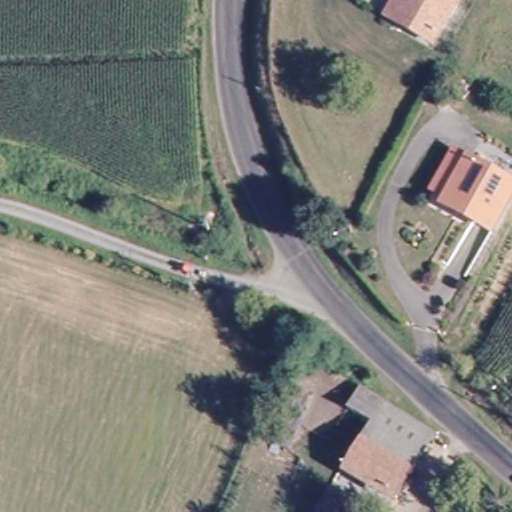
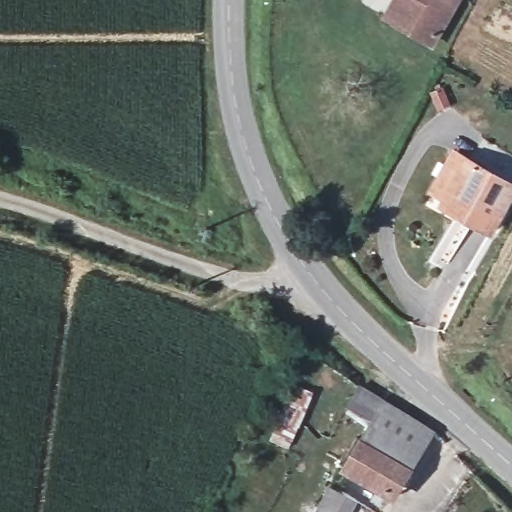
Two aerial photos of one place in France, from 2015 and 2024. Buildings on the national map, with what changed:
unchanged [(400,0),(464,0),(438,42),(404,20),(392,12),(400,0)]
unchanged [(483,227),(450,206),(436,197),(439,190),(425,182),(450,145),(462,153),(511,181),(483,227)]
unchanged [(388,496),(342,467),(373,421),(346,404),(360,384),(386,402),(435,434),(410,471),(394,499),(388,496)]
unchanged [(328,484),(355,502),(348,512),(312,512),(318,501),(328,484)]

